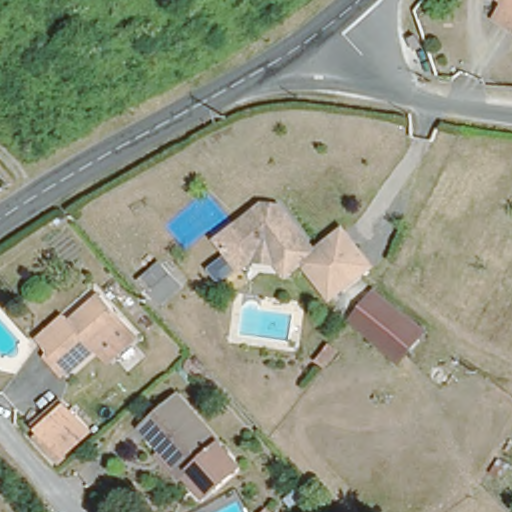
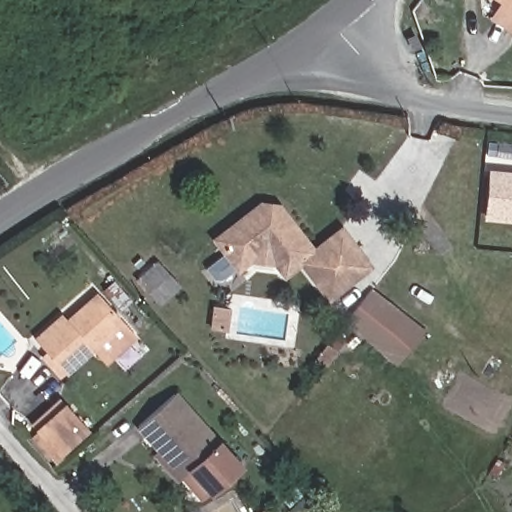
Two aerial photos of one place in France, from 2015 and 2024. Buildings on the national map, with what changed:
unchanged [(496,1),(493,0),(512,0),(512,37),(483,17),(496,1)]
new [(488,169),(512,171),(512,222),(483,219),(488,169)]
unchanged [(268,240),(256,250),(242,260),(219,232),(260,198),(281,199),(314,242),(293,259),(287,263),(277,250),(268,240)]
unchanged [(340,223),(374,266),(327,303),(293,259),(314,242),(340,223)]
unchanged [(160,309),(137,282),(161,259),(184,287),(160,309)]
unchanged [(365,284),(421,326),(399,359),(341,315),(365,284)]
unchanged [(59,309),(66,316),(95,291),(132,332),(104,358),(92,343),(62,368),(31,333),(59,309)]
unchanged [(209,494),(201,501),(176,468),(174,471),(152,445),(157,441),(136,416),(171,386),(232,458),(242,466),(209,494)]
unchanged [(60,402),(80,424),(54,445),(35,422),(60,402)]

